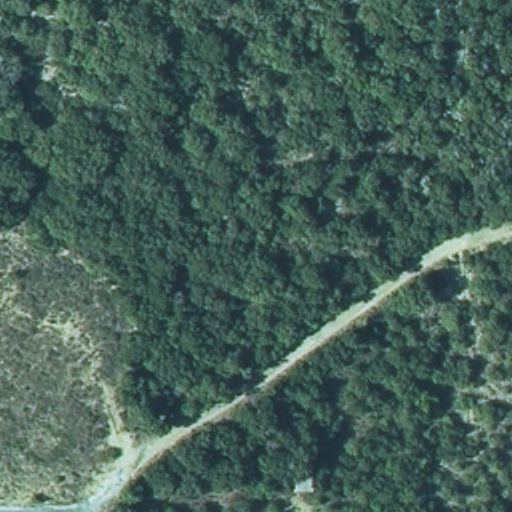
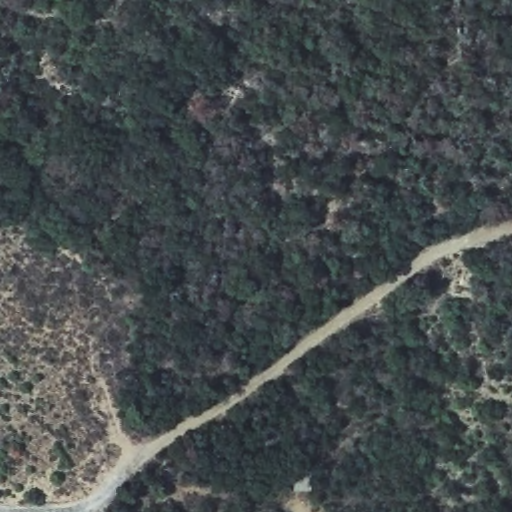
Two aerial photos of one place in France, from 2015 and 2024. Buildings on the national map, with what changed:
unchanged [(318,466),(317,488),(299,489),(301,467),(318,466)]

